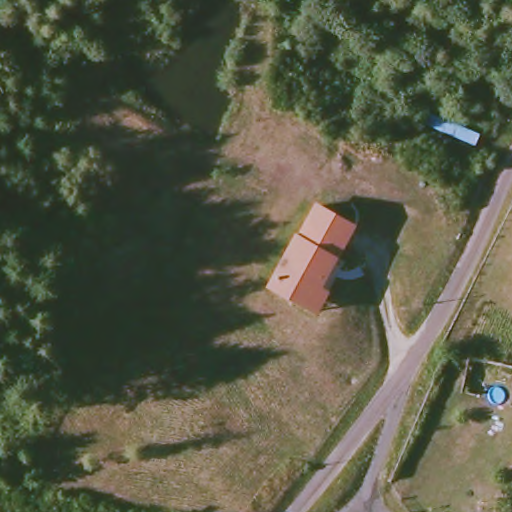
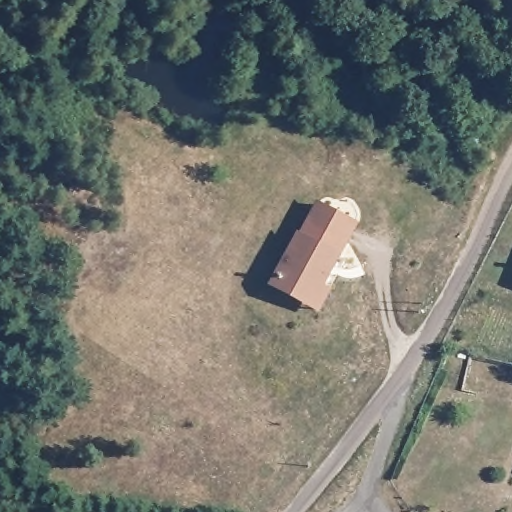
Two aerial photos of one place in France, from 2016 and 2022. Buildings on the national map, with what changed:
unchanged [(355,228),(323,289),(331,296),(318,321),(266,289),(294,236),(297,237),(314,206),(355,228)]

